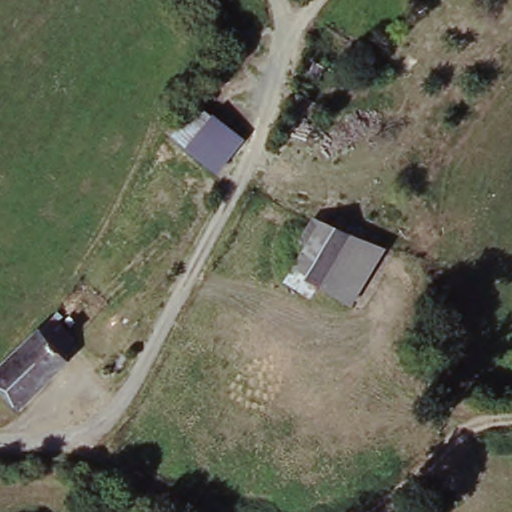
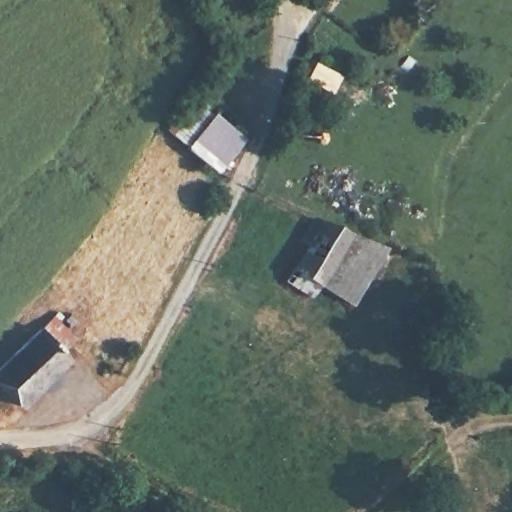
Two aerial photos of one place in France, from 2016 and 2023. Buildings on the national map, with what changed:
unchanged [(413,87),(401,79),(415,63),(426,71),(413,87)]
unchanged [(173,134),(205,98),(245,130),(211,168),(173,134)]
unchanged [(321,274),(310,290),(286,273),(310,231),(304,227),(316,205),(352,222),(321,274)]
unchanged [(387,242),(355,297),(321,274),(352,222),(387,242)]
unchanged [(55,313),(82,343),(74,352),(19,404),(0,384),(0,364),(45,323),(55,313)]

